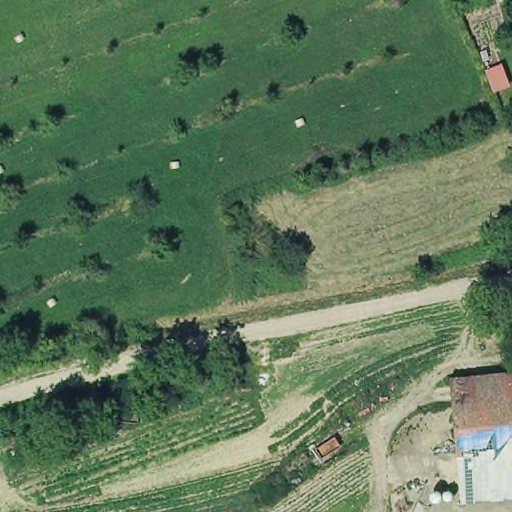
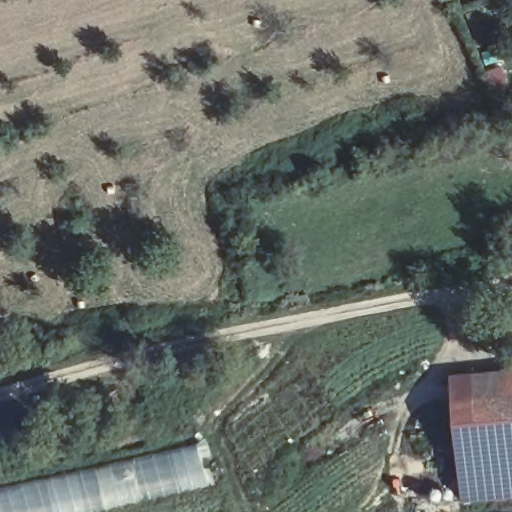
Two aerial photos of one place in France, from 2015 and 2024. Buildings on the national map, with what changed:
unchanged [(461,502),(452,385),(512,380),(512,497),(461,502)]
new [(219,486),(106,512),(0,512),(0,488),(201,443),(219,486)]

